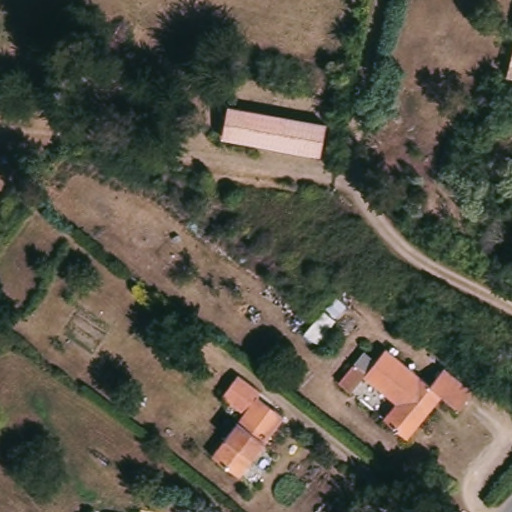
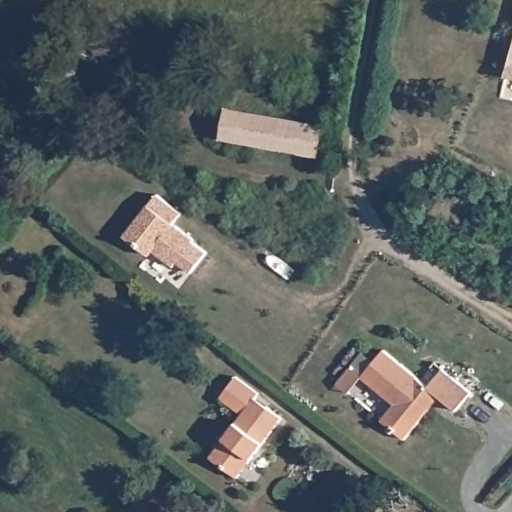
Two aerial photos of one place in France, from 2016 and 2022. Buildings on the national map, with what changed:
unchanged [(503,77),(512,45),(512,78),(503,77)]
unchanged [(322,156),(222,139),(227,106),(327,124),(322,156)]
new [(181,215),(172,226),(193,240),(192,242),(206,254),(191,274),(176,263),(172,267),(151,250),(148,256),(123,238),(156,196),(181,215)]
unchanged [(407,433),(382,415),(394,399),(362,373),(382,346),(427,379),(438,363),(468,387),(456,403),(437,391),(428,404),(407,433)]
unchanged [(347,394),(334,385),(349,365),(361,373),(347,394)]
unchanged [(234,375),(257,392),(254,395),(282,415),(239,474),(211,454),(241,412),(219,396),(234,375)]

